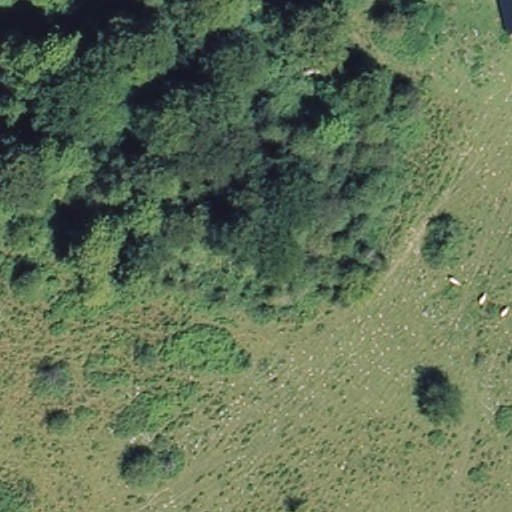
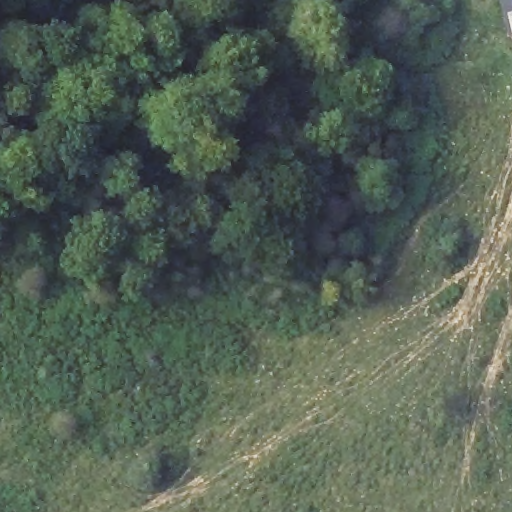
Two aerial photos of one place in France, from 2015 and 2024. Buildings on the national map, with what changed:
unchanged [(512,0),(512,37),(507,37),(498,0),(512,0)]

